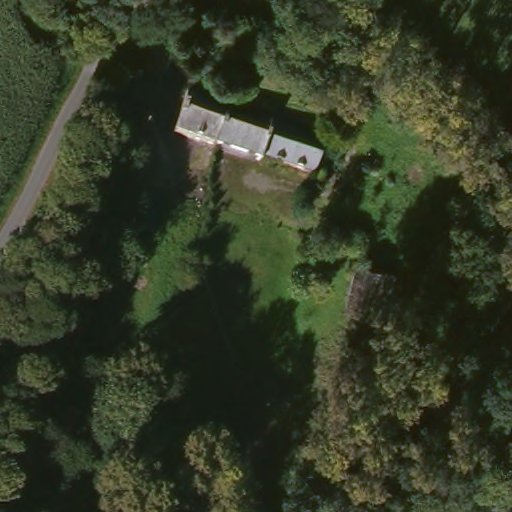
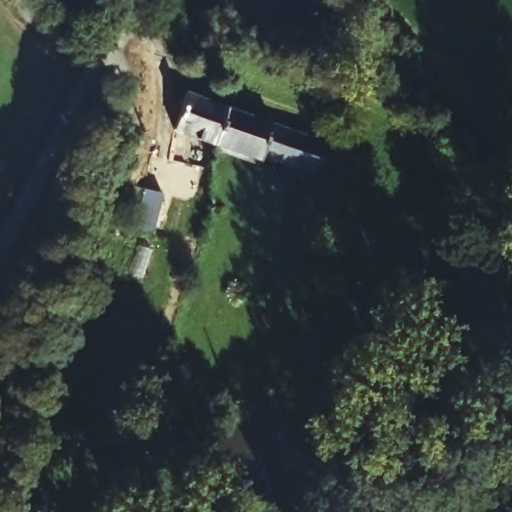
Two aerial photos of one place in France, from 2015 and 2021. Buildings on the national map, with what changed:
unchanged [(295,0),(324,0),(313,20),(291,8),(295,0)]
unchanged [(214,149),(174,134),(185,95),(224,111),(214,149)]
unchanged [(325,145),(313,179),(262,162),(260,166),(214,149),(224,111),(229,114),(274,128),(325,145)]
unchanged [(130,229),(141,191),(160,197),(159,202),(150,231),(149,235),(130,229)]
unchanged [(361,265),(388,275),(371,321),(344,311),(361,265)]

